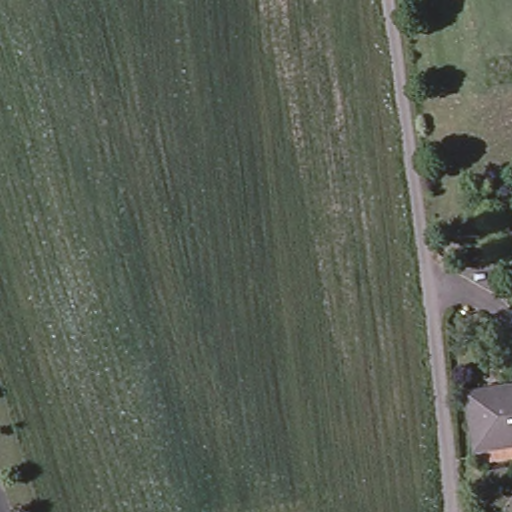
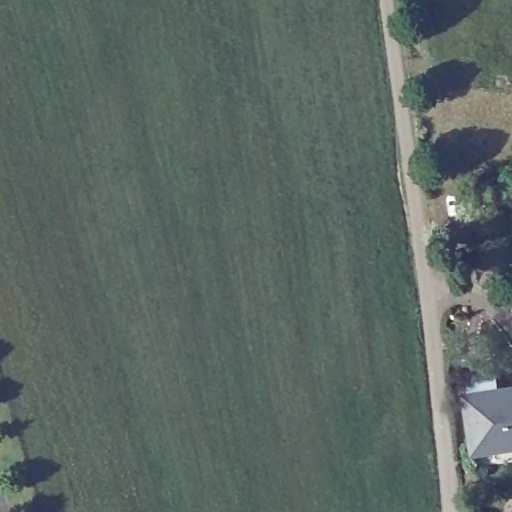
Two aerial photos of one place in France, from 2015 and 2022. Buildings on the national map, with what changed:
unchanged [(499,400),(498,390),(512,388),(512,454),(508,454),(506,444),(471,449),(464,405),(499,400)]

